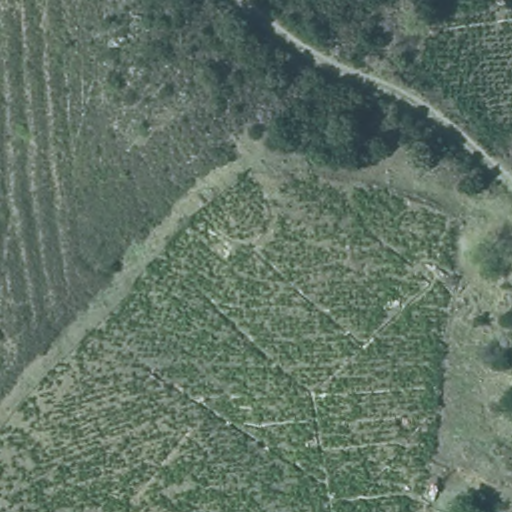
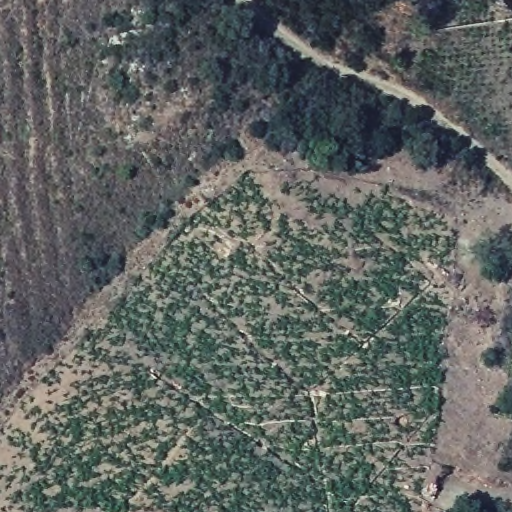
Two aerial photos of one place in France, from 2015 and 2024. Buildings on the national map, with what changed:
[]

